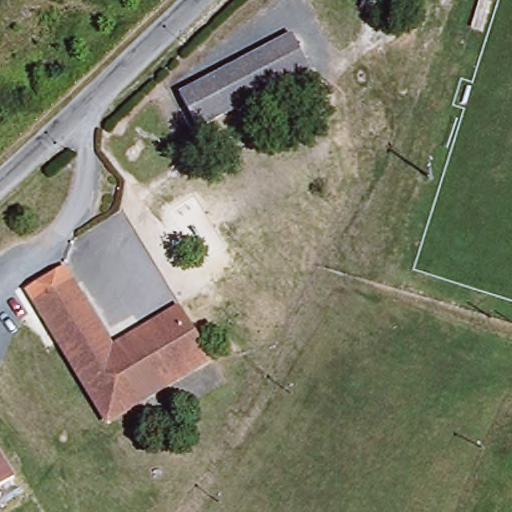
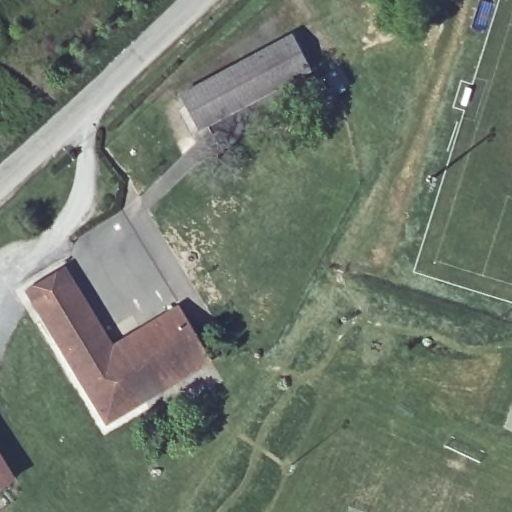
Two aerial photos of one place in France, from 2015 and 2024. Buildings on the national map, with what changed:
unchanged [(368,21),(371,11),(362,8),(364,1),(374,5),(373,7),(384,11),(394,14),(389,28),(379,25),(368,21)]
unchanged [(263,54),(298,35),(315,67),(280,86),(263,54)]
unchanged [(239,108),(222,77),(263,54),(280,86),(239,108)]
unchanged [(239,108),(204,127),(187,96),(222,77),(239,108)]
unchanged [(106,423),(25,289),(65,263),(113,343),(178,304),(209,361),(106,423)]
unchanged [(0,491),(0,450),(17,482),(0,491)]

